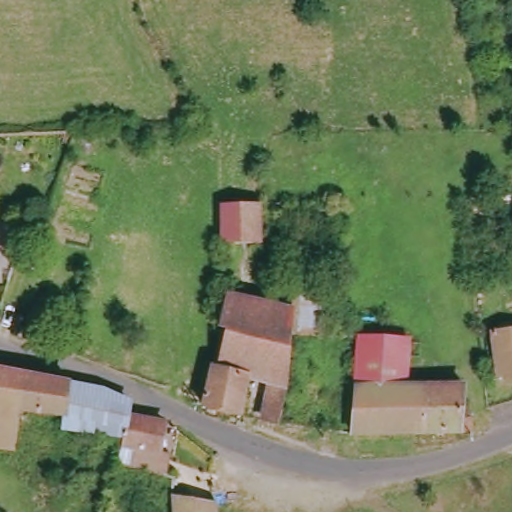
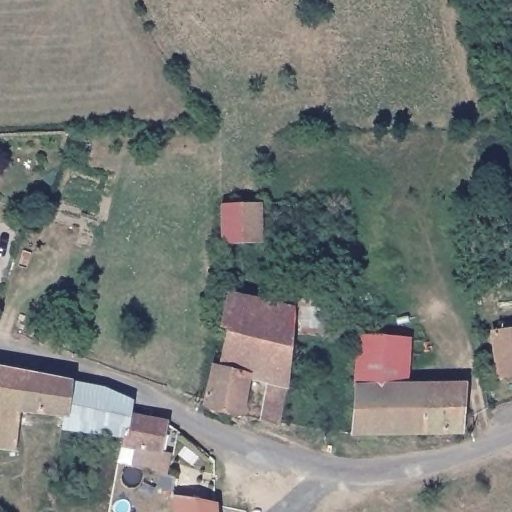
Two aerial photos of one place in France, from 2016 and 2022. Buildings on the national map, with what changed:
unchanged [(254,204),(254,242),(217,244),(218,205),(254,204)]
unchanged [(294,313),(292,338),(281,426),(268,422),(273,382),(248,379),(239,414),(202,404),(210,363),(214,363),(222,363),(222,330),(215,328),(216,296),(294,313)]
unchanged [(491,335),(512,334),(512,372),(494,374),(491,335)]
unchanged [(396,396),(456,395),(456,423),(468,425),(467,435),(347,435),(354,344),(400,345),(396,396)]
unchanged [(17,411),(13,449),(0,447),(0,372),(69,384),(62,419),(17,411)]
unchanged [(62,419),(69,384),(98,391),(124,405),(122,417),(118,441),(60,434),(62,419)]
unchanged [(122,417),(159,423),(154,454),(164,456),(162,475),(127,466),(131,450),(116,448),(118,441),(122,417)]
unchanged [(211,512),(172,512),(171,499),(211,506),(211,512)]

